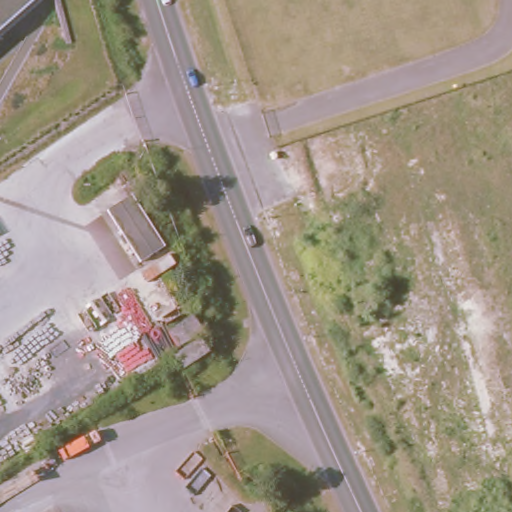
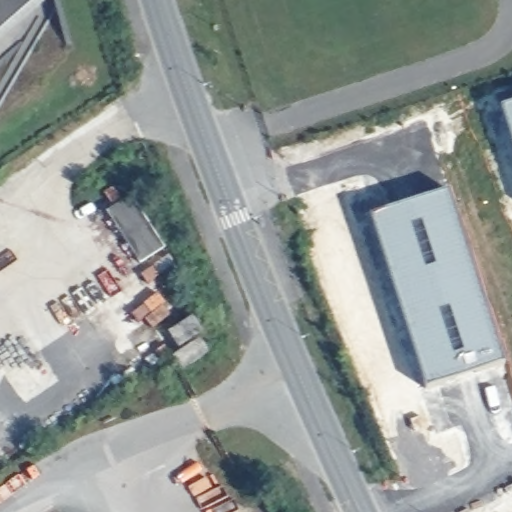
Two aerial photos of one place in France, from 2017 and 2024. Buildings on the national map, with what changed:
unchanged [(0,0),(36,0),(0,32),(0,0)]
new [(500,108),(512,104),(512,143),(500,108)]
unchanged [(166,247),(137,267),(101,214),(132,191),(166,247)]
new [(505,362),(425,388),(369,215),(447,191),(505,362)]
unchanged [(198,329),(176,343),(167,329),(190,315),(198,329)]
unchanged [(184,364),(176,352),(202,334),(210,348),(184,364)]

